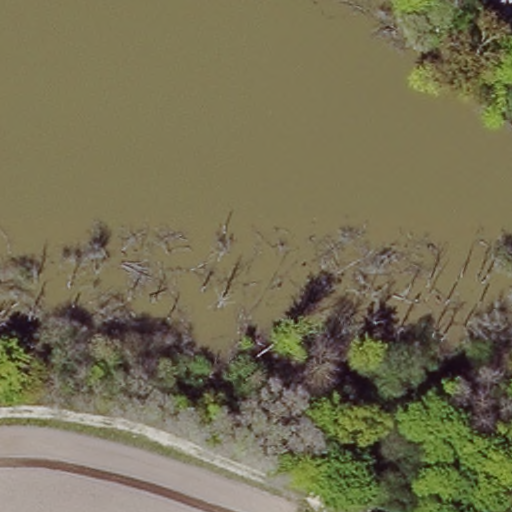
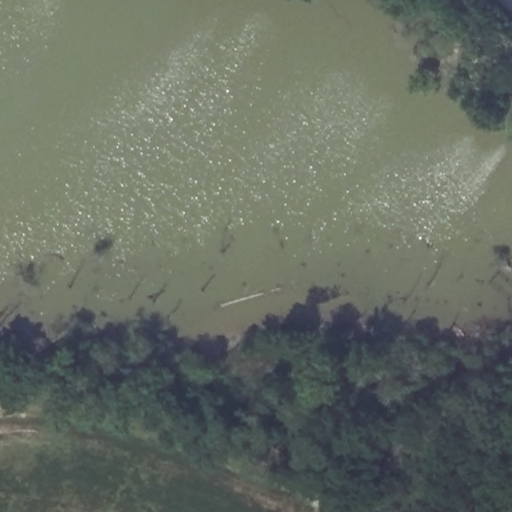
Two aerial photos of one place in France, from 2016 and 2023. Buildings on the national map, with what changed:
[]

